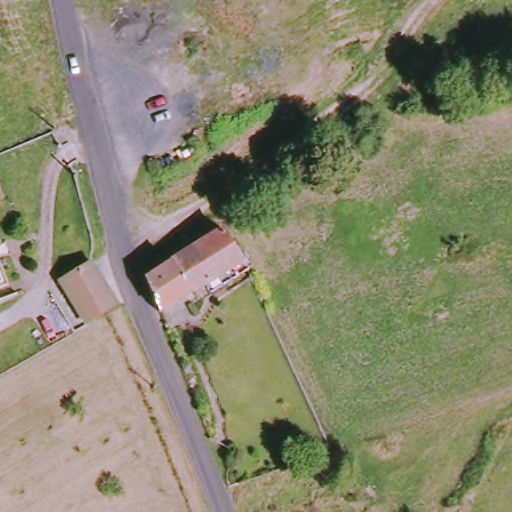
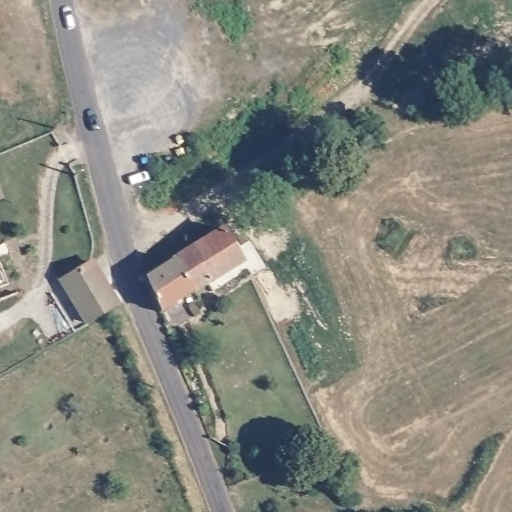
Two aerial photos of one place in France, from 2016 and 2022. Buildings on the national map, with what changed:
unchanged [(0,198),(0,195),(1,198),(0,198)]
unchanged [(193,254),(228,240),(247,273),(213,289),(199,296),(162,313),(144,279),(178,261),(193,254)]
unchanged [(0,285),(0,260),(10,281),(0,285)]
unchanged [(89,327),(65,289),(94,269),(120,309),(89,327)]

